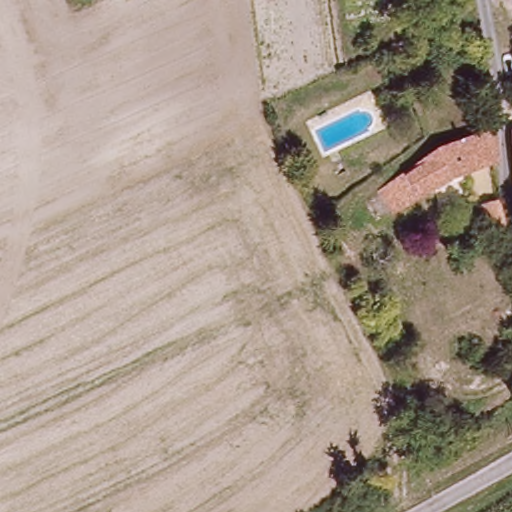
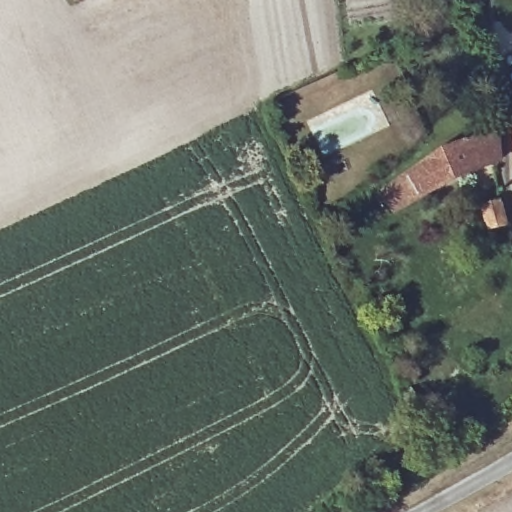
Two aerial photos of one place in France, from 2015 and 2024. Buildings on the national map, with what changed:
unchanged [(511,185),(508,129),(512,129),(512,185),(511,185)]
unchanged [(496,132),(501,161),(374,224),(363,202),(437,158),(496,132)]

